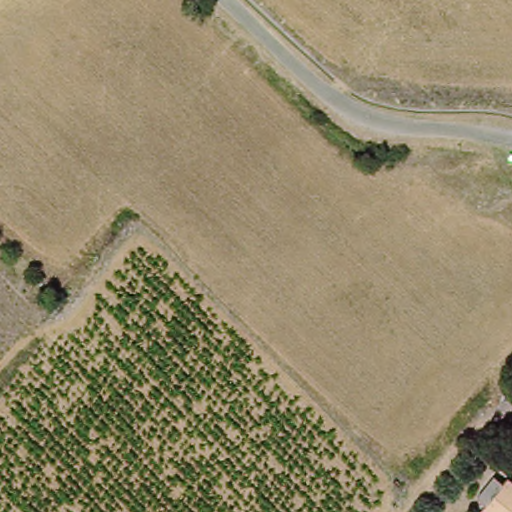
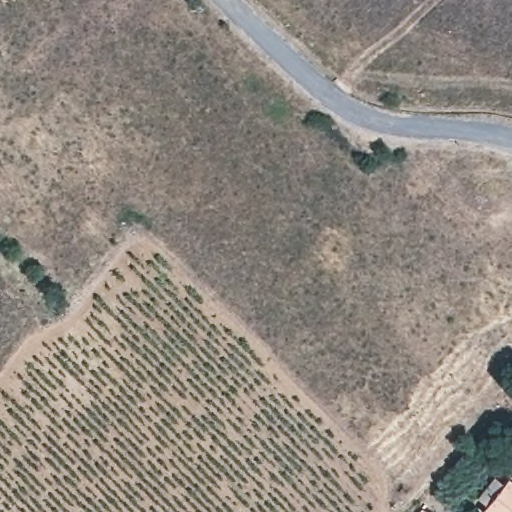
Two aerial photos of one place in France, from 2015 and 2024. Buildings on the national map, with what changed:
unchanged [(502,484),(512,493),(512,512),(480,512),(502,484)]

